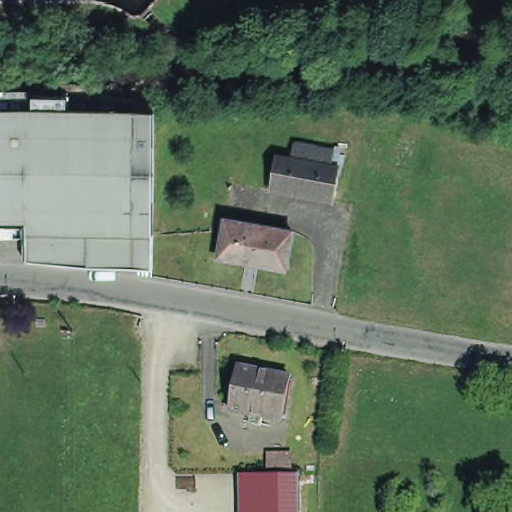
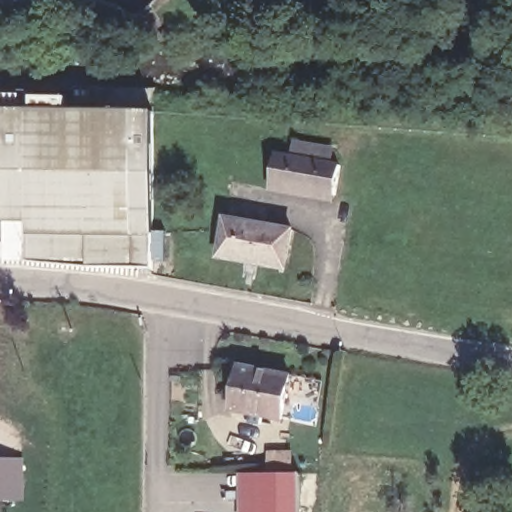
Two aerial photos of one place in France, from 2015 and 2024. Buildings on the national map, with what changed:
unchanged [(152,270),(150,270),(87,269),(27,263),(27,223),(0,222),(0,112),(27,112),(27,99),(67,99),(67,113),(153,113),(153,138),(152,191),(152,235),(152,270)]
unchanged [(327,202),(281,194),(264,191),(268,161),(280,163),(285,164),(288,147),(323,154),(320,170),(332,172),(327,202)]
unchanged [(288,237),(285,255),(282,275),(223,265),(215,264),(220,241),(222,225),(288,237)]
unchanged [(230,416),(240,372),(288,383),(280,427),(230,416)]
new [(22,503),(0,503),(0,463),(20,462),(22,503)]
unchanged [(300,475),(300,512),(242,512),(242,472),(300,475)]

